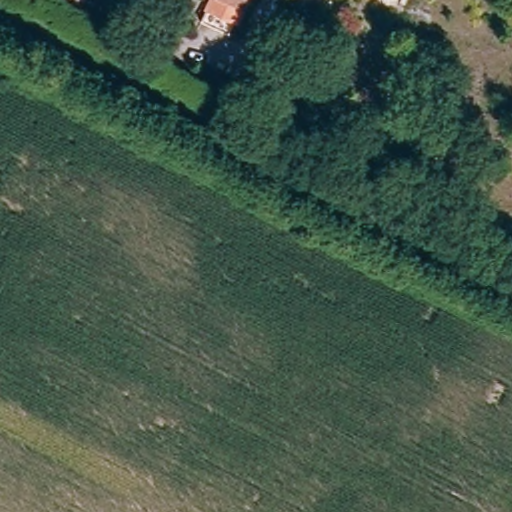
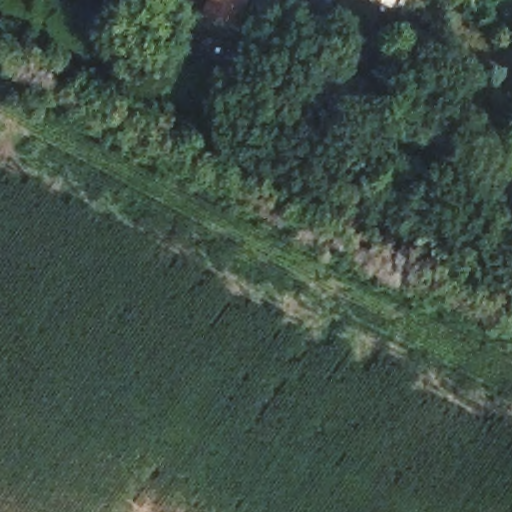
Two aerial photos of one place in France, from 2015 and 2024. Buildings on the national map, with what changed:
unchanged [(228,39),(200,27),(212,0),(245,0),(240,10),(228,39)]

